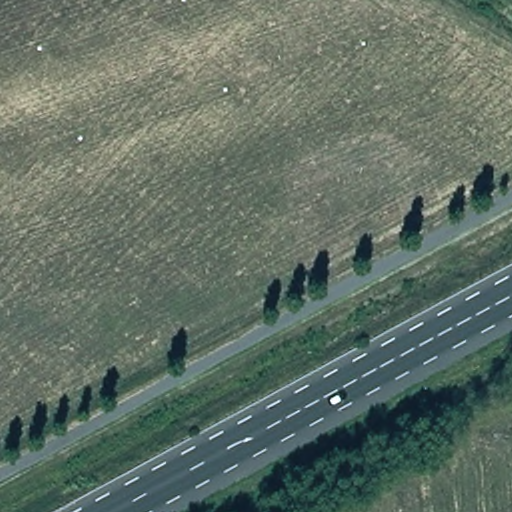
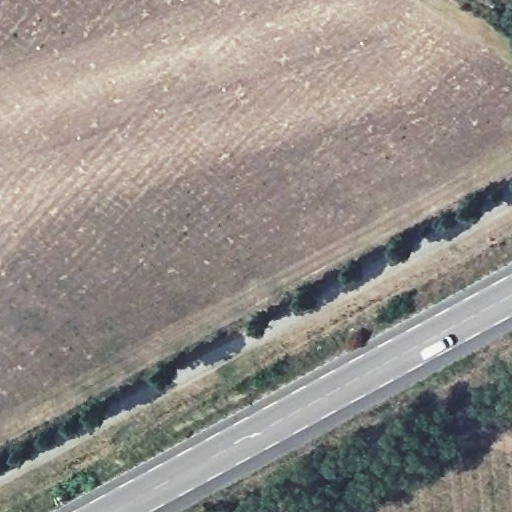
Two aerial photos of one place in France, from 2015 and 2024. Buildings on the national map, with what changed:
[]

